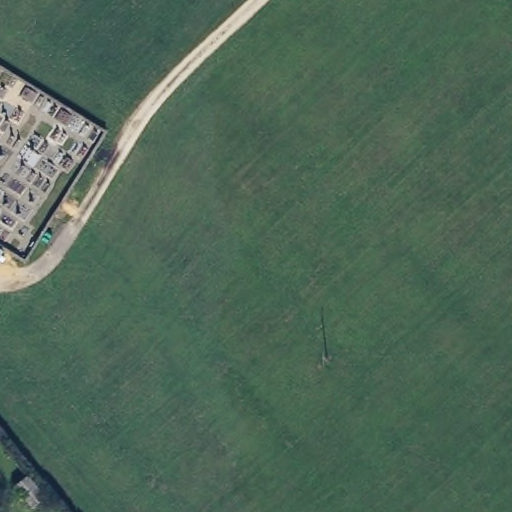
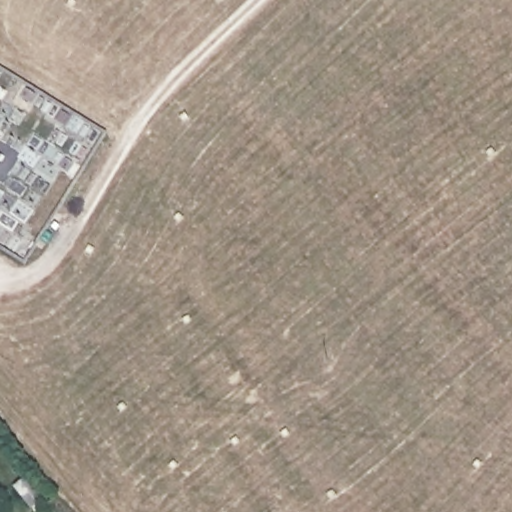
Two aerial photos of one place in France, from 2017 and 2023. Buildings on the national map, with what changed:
unchanged [(57,488),(40,502),(25,482),(43,471),(57,488)]

